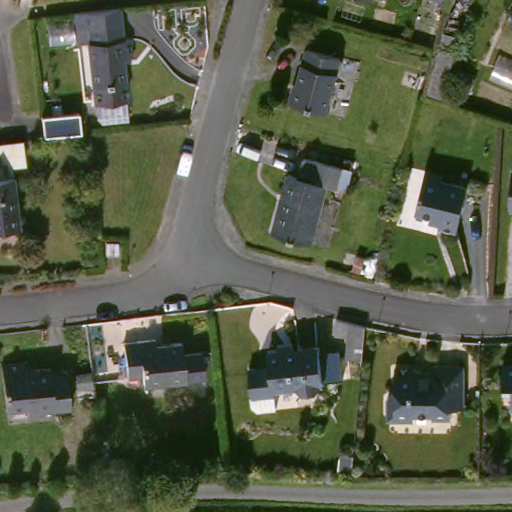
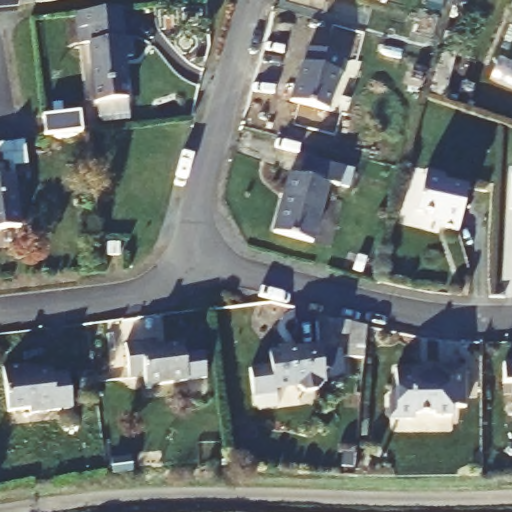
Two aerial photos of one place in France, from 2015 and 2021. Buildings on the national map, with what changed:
unchanged [(134,36),(140,35),(142,54),(136,55),(139,79),(136,80),(139,97),(107,100),(100,40),(89,41),(87,26),(85,11),(130,5),(134,36)]
unchanged [(350,50),(338,101),(297,91),(302,70),(306,71),(312,42),(350,50)]
unchanged [(84,113),(86,133),(49,138),(46,118),(84,113)]
unchanged [(20,174),(0,179),(0,140),(28,137),(36,170),(20,174)]
unchanged [(345,189),(334,186),(323,235),(285,226),(297,170),(308,171),(311,155),(350,164),(345,189)]
unchanged [(445,170),(444,175),(468,180),(460,224),(442,220),(443,216),(433,215),(435,209),(420,206),(426,166),(445,170)]
unchanged [(1,229),(0,224),(0,179),(20,174),(31,220),(1,229)]
unchanged [(351,358),(352,332),(341,332),(341,315),(353,319),(370,323),(370,358),(351,358)]
unchanged [(165,343),(194,339),(196,351),(215,349),(218,373),(200,376),(200,381),(156,386),(154,377),(139,379),(135,336),(164,333),(165,343)]
unchanged [(256,405),(251,400),(250,390),(248,362),(269,360),(267,348),(323,344),(325,353),(345,351),(346,377),(326,378),(327,382),(322,390),(307,391),(301,381),(273,384),(273,388),(275,403),(256,405)]
unchanged [(56,361),(56,367),(74,366),(79,405),(16,411),(10,360),(34,357),(34,363),(56,361)]
unchanged [(510,380),(510,358),(512,358),(512,390),(511,390),(510,380)]
unchanged [(473,405),(460,406),(460,415),(442,415),(442,412),(422,412),(416,419),(404,420),(396,412),(395,396),(403,389),(402,367),(421,366),(421,368),(426,368),(427,373),(440,372),(440,365),(471,364),(473,405)]

